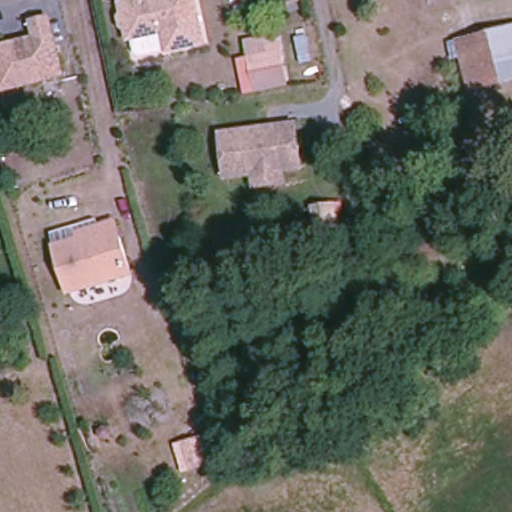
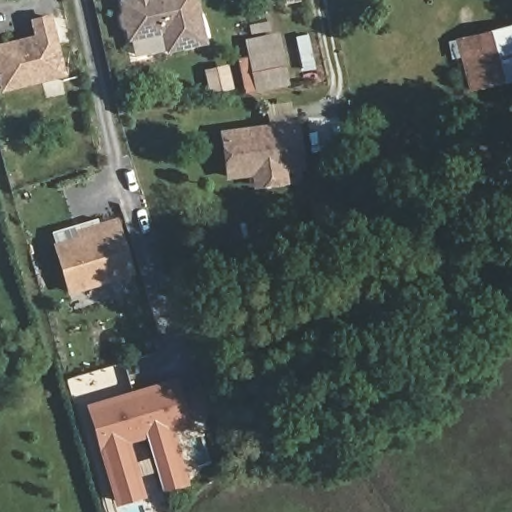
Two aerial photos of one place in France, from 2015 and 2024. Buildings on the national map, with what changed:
unchanged [(213,43),(161,51),(157,34),(124,41),(121,28),(115,25),(114,13),(116,11),(114,0),(206,0),(213,43)]
unchanged [(27,21),(50,16),(66,78),(0,94),(0,46),(32,37),(27,21)]
unchanged [(470,93),(460,64),(451,67),(445,50),(454,47),(512,27),(512,80),(470,93)]
unchanged [(237,57),(247,56),(245,41),(275,37),(281,85),(252,89),(251,81),(241,82),(237,57)]
unchanged [(293,119),(298,168),(285,169),(286,182),(251,185),(250,176),(222,179),(217,128),(293,119)]
unchanged [(335,202),(337,225),(313,228),(311,205),(335,202)]
unchanged [(134,273),(72,292),(59,246),(82,239),(80,233),(104,226),(119,222),(134,273)]
new [(161,487),(145,433),(126,438),(142,492),(120,500),(92,406),(172,382),(184,421),(166,426),(183,481),(161,487)]
new [(210,412),(191,419),(187,404),(206,398),(210,412)]
demolished [(206,436),(214,466),(189,473),(180,443),(206,436)]

